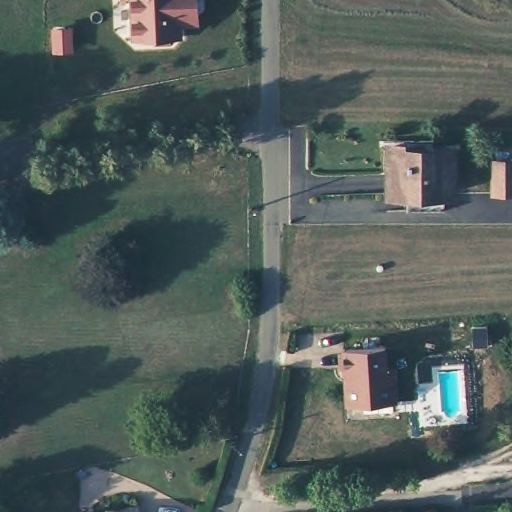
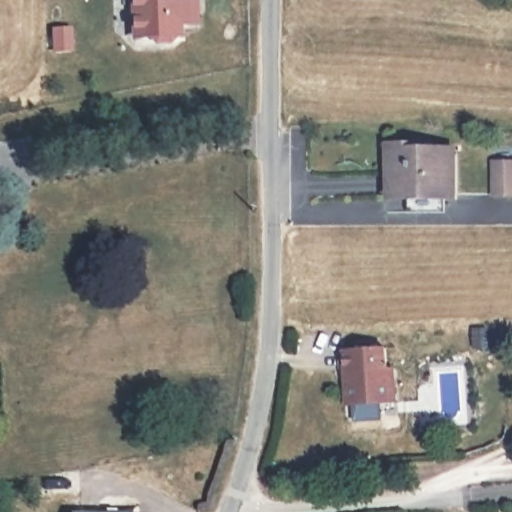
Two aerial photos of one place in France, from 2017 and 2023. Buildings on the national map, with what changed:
unchanged [(201,24),(183,25),(183,38),(176,40),(172,43),(157,43),(153,38),(130,39),(129,0),(198,0),(201,24)]
unchanged [(511,157),(511,187),(489,189),(490,154),(511,157)]
unchanged [(385,156),(407,155),(408,161),(447,162),(447,205),(385,205),(385,156)]
unchanged [(341,375),(340,355),(381,352),(382,373),(388,372),(390,385),(390,406),(349,410),(343,409),(341,375)]

